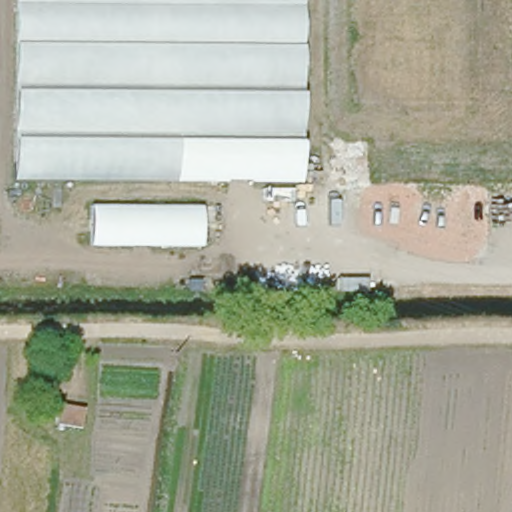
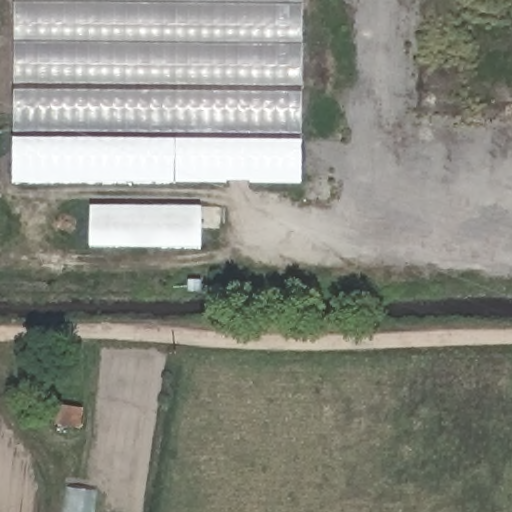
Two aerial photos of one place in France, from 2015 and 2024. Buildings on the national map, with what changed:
unchanged [(300,181),(12,179),(16,0),(303,0),(300,181)]
unchanged [(201,246),(91,245),(92,205),(201,204),(201,246)]
unchanged [(85,409),(77,409),(73,444),(49,441),(52,407),(46,406),(49,380),(86,383),(85,409)]
new [(98,491),(95,512),(63,512),(67,486),(98,491)]

